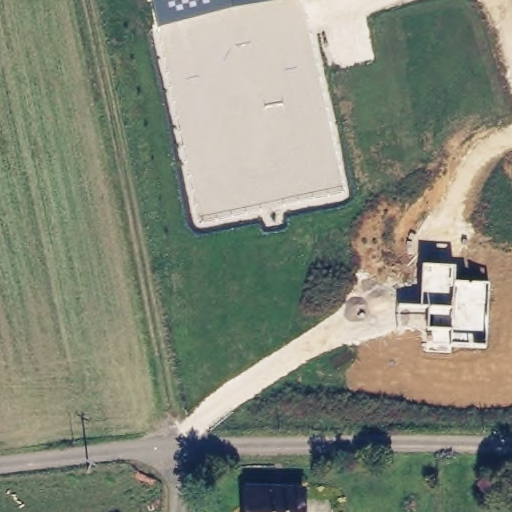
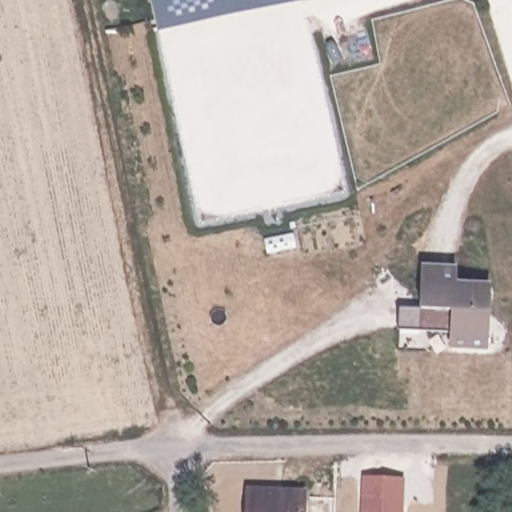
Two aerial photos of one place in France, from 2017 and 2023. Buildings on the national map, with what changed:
unchanged [(157,32),(150,0),(306,0),(157,32)]
unchanged [(420,307),(422,267),(454,267),(453,283),(488,285),(485,347),(451,347),(450,332),(397,330),(398,307),(420,307)]
new [(400,480),(399,512),(361,512),(362,478),(400,480)]
unchanged [(247,512),(248,492),(305,495),(304,512),(247,512)]

